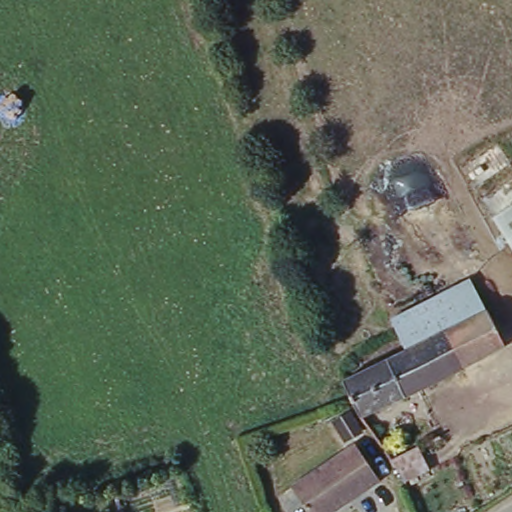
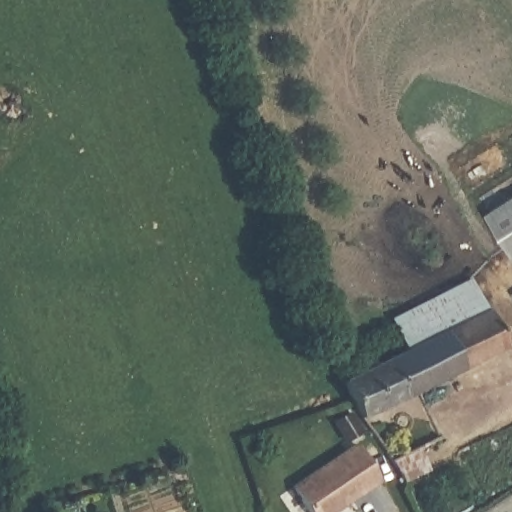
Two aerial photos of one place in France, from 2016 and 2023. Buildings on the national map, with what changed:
unchanged [(494,224),(512,211),(512,252),(494,224)]
unchanged [(394,328),(473,289),(487,318),(409,358),(394,328)]
unchanged [(409,358),(487,318),(490,319),(507,355),(363,425),(354,409),(347,389),(409,358)]
unchanged [(358,451),(382,485),(340,512),(309,512),(296,492),(358,451)]
unchanged [(392,464),(421,451),(433,474),(407,486),(392,464)]

